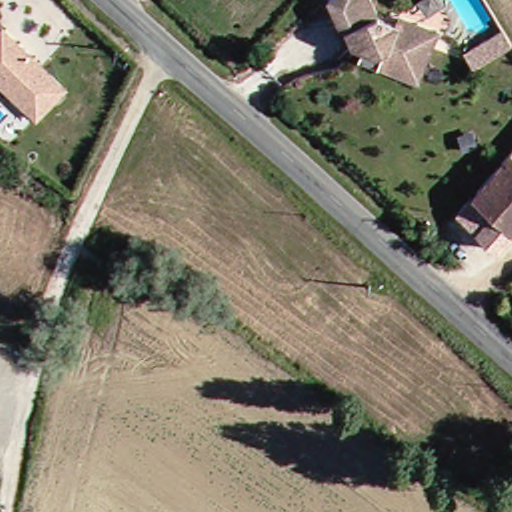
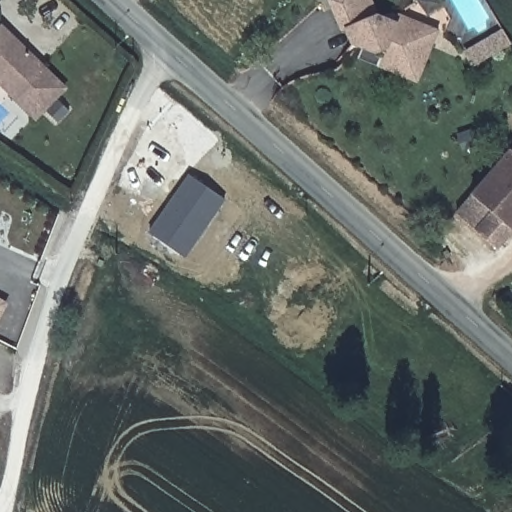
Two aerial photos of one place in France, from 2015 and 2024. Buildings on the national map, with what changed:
unchanged [(354,60),(360,42),(346,42),(342,29),(332,31),(321,0),(363,0),(368,14),(387,21),(395,15),(407,19),(435,29),(431,41),(422,72),(417,82),(354,60)]
unchanged [(503,26),(503,27),(512,41),(470,68),(465,60),(471,55),(467,50),(503,26)]
unchanged [(35,121),(9,99),(0,90),(0,30),(64,91),(35,121)]
unchanged [(453,245),(468,227),(452,214),(512,147),(512,228),(477,268),(453,245)]
new [(186,259),(148,232),(188,174),(225,200),(186,259)]
new [(0,321),(0,299),(9,304),(0,321)]

